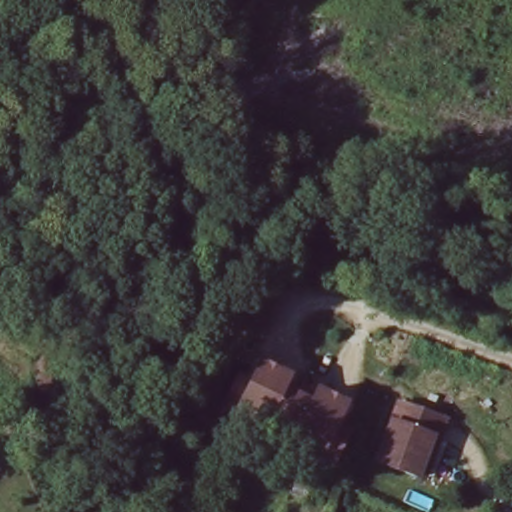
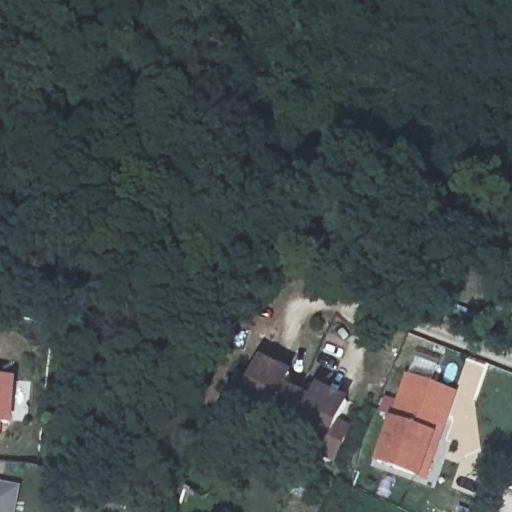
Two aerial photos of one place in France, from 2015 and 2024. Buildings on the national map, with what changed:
unchanged [(327,478),(303,462),(307,456),(293,447),(296,442),(269,426),(266,430),(253,421),(248,427),(224,412),(243,382),(255,390),(267,371),(294,387),(286,400),(312,417),(320,405),(347,422),(334,441),(346,448),(327,478)]
new [(14,382),(11,422),(0,422),(0,381),(14,382)]
unchanged [(415,472),(375,457),(397,395),(444,412),(436,434),(421,475),(415,472)]
new [(22,489),(17,512),(0,512),(0,484),(22,489)]

